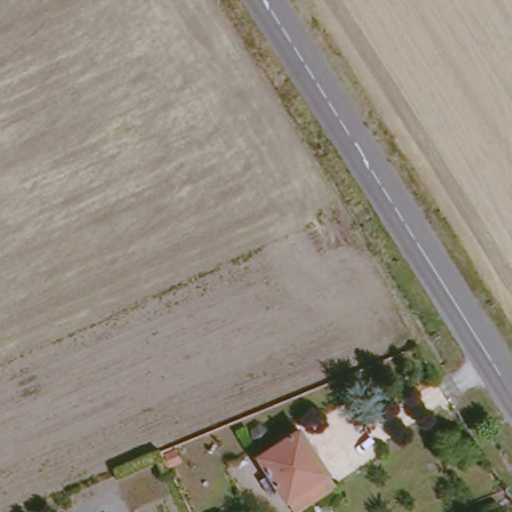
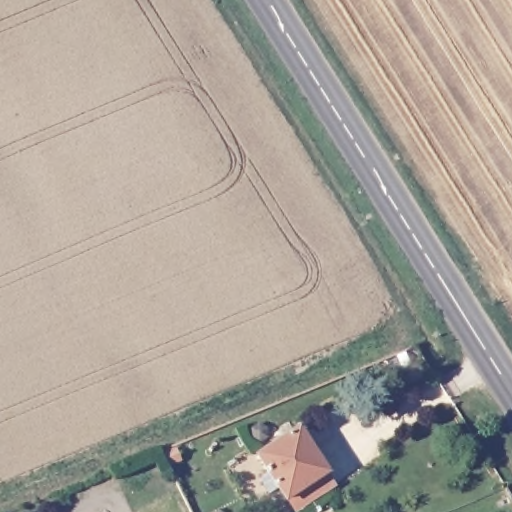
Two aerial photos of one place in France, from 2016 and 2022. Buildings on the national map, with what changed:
unchanged [(301,510),(295,500),(288,489),(279,495),(268,479),(276,474),(266,457),(308,427),(336,471),(342,481),(301,510)]

